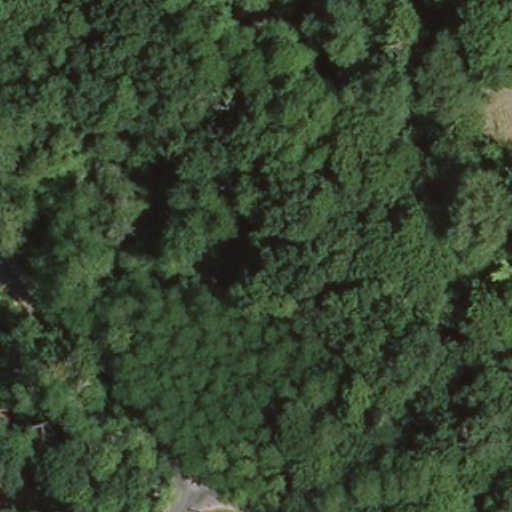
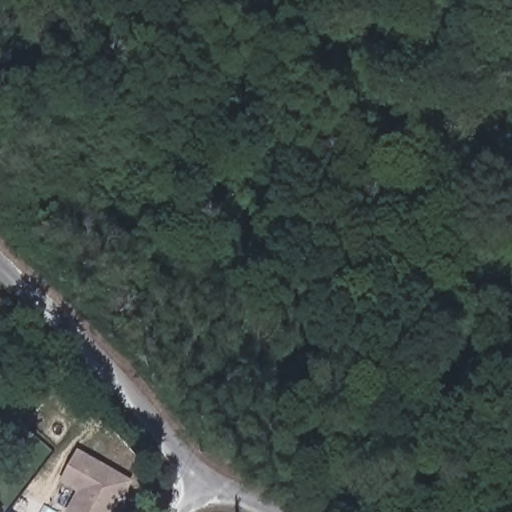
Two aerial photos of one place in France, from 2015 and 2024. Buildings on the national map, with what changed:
new [(132,482),(114,512),(68,512),(80,491),(63,481),(79,452),(132,482)]

